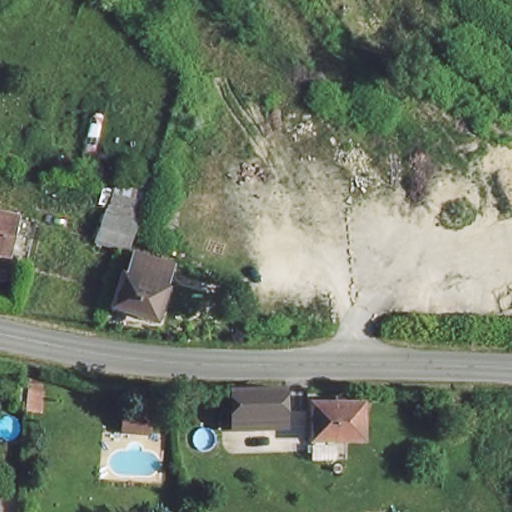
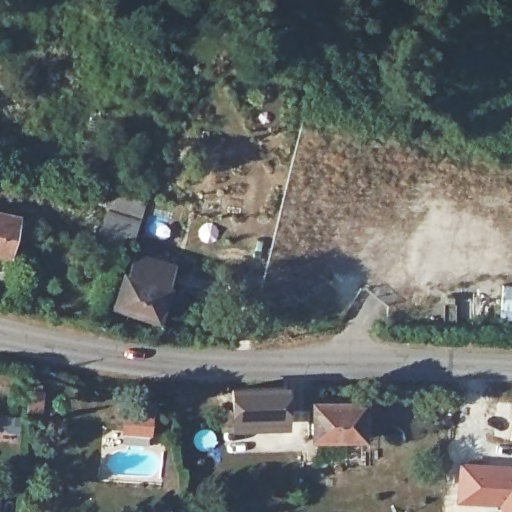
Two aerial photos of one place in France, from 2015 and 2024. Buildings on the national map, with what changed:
unchanged [(137,212),(107,204),(111,187),(142,195),(137,212)]
unchanged [(10,249),(0,247),(0,207),(15,210),(10,249)]
unchanged [(92,235),(101,210),(134,220),(125,246),(92,235)]
unchanged [(115,307),(134,250),(178,257),(163,319),(115,307)]
unchanged [(12,413),(12,390),(23,389),(23,412),(12,413)]
unchanged [(285,426),(239,425),(239,396),(283,397),(285,426)]
unchanged [(322,400),(367,400),(364,437),(320,436),(322,400)]
unchanged [(133,422),(113,421),(104,420),(105,402),(114,403),(134,405),(133,422)]
new [(457,460),(512,464),(512,512),(503,512),(499,505),(455,505),(457,460)]

